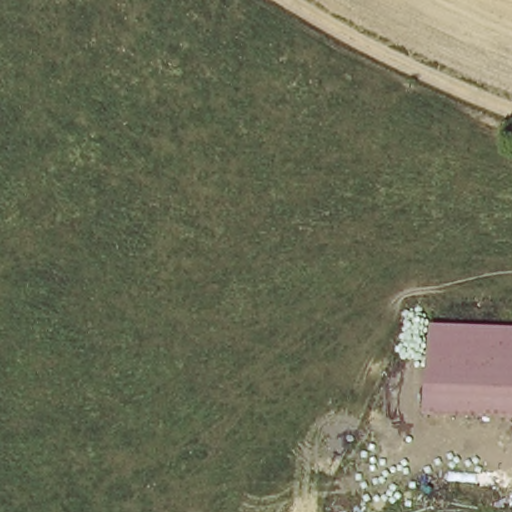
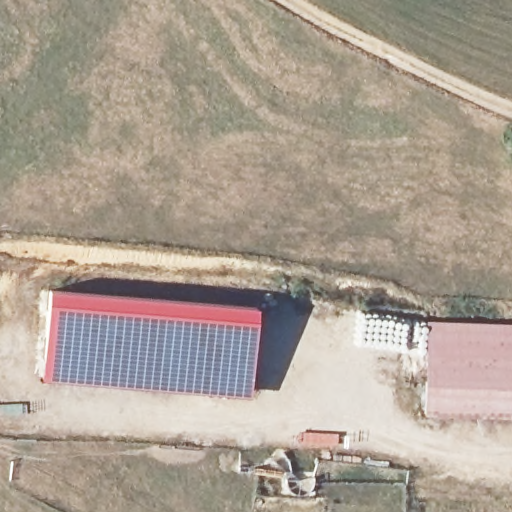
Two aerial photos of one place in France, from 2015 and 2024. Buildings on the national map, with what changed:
new [(43,380),(50,290),(257,307),(251,396),(43,380)]
unchanged [(512,335),(512,421),(425,420),(430,334),(512,335)]

